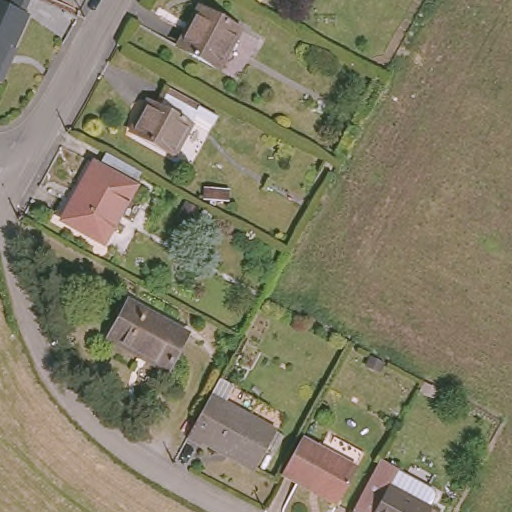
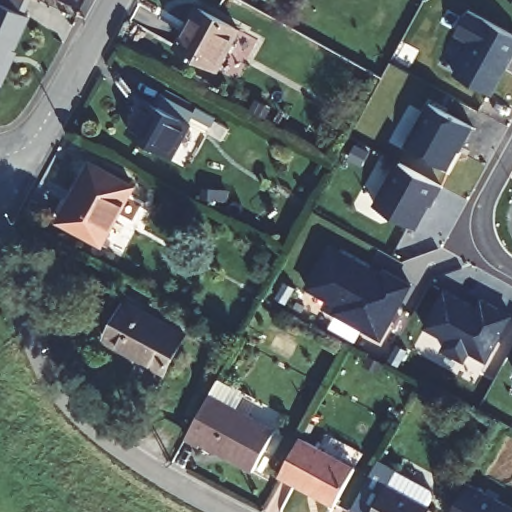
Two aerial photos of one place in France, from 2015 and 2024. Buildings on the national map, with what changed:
unchanged [(9,53),(12,54),(0,79),(0,0),(11,0),(30,8),(9,53)]
new [(499,0),(512,0),(512,7),(499,0)]
unchanged [(193,6),(240,34),(217,74),(179,52),(190,34),(180,28),(193,6)]
new [(493,95),(454,72),(471,42),(457,33),(470,8),(512,32),(512,61),(493,95)]
unchanged [(150,103),(161,110),(170,96),(200,114),(175,158),(132,132),(150,103)]
new [(474,127),(450,173),(405,149),(430,105),(474,127)]
new [(445,186),(435,205),(432,203),(417,228),(374,204),(399,160),(445,186)]
unchanged [(90,161),(134,186),(104,241),(61,216),(90,161)]
new [(330,250),(384,280),(386,275),(414,291),(382,347),(333,318),(337,311),(305,295),(330,250)]
new [(489,362),(471,352),(465,362),(442,350),(450,339),(425,325),(445,286),(474,302),(478,294),(512,314),(512,320),(489,362)]
unchanged [(125,300),(185,336),(164,374),(104,338),(125,300)]
unchanged [(215,381),(229,388),(220,403),(272,432),(250,472),(197,443),(195,447),(183,440),(215,381)]
unchanged [(335,505),(287,480),(279,476),(297,438),(307,443),(353,468),(335,505)]
unchanged [(397,462),(390,478),(432,501),(426,512),(349,512),(380,453),(397,462)]
new [(450,512),(469,480),(512,506),(512,512),(450,512)]

